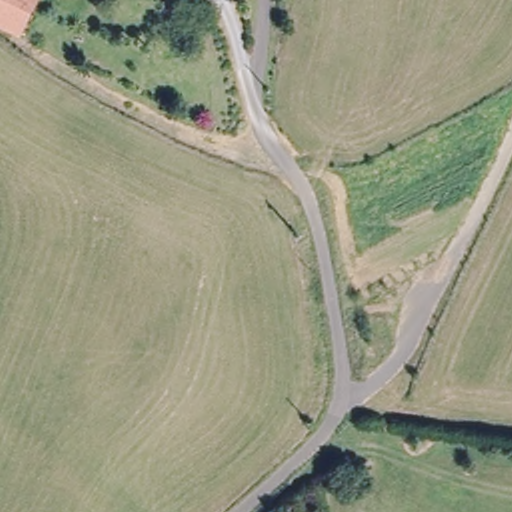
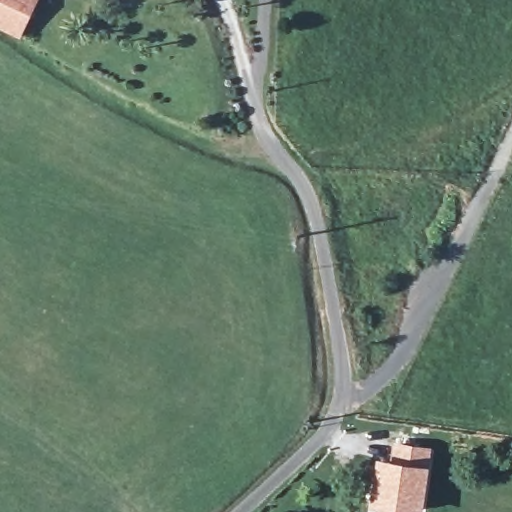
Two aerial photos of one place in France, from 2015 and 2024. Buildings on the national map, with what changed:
unchanged [(40,0),(24,35),(0,26),(0,0),(40,0)]
new [(431,464),(424,512),(417,512),(372,506),(378,457),(393,459),(395,441),(432,447),(431,464)]

